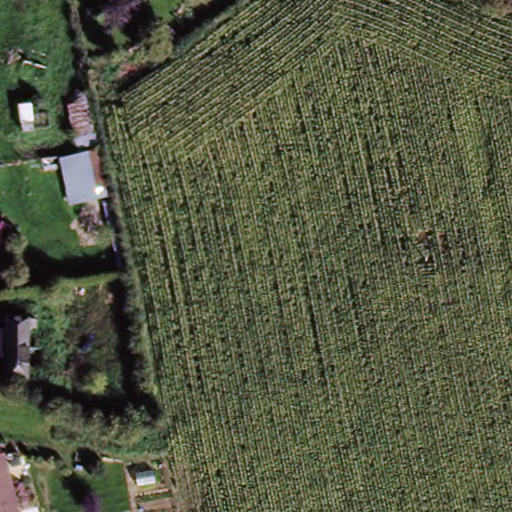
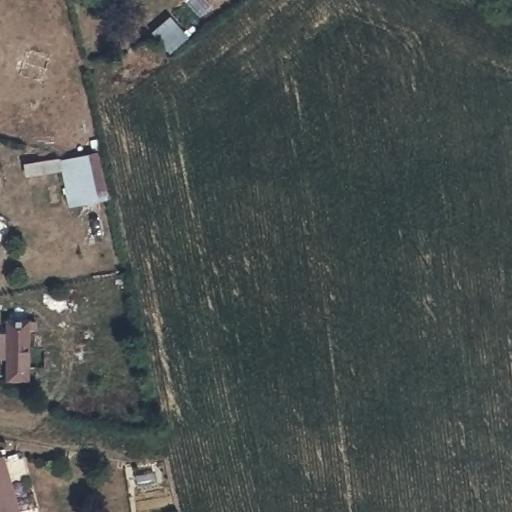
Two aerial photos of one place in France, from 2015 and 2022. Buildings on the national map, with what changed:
unchanged [(25,44),(45,52),(32,81),(14,73),(25,44)]
unchanged [(63,97),(82,92),(94,150),(77,153),(63,97)]
unchanged [(57,161),(92,153),(102,194),(67,202),(57,161)]
unchanged [(0,250),(0,233),(7,237),(0,250)]
unchanged [(42,348),(50,348),(50,370),(30,368),(30,381),(2,378),(5,357),(0,357),(0,330),(7,331),(8,317),(35,320),(34,331),(42,331),(42,348)]
unchanged [(7,452),(24,512),(0,512),(0,454),(7,452)]

